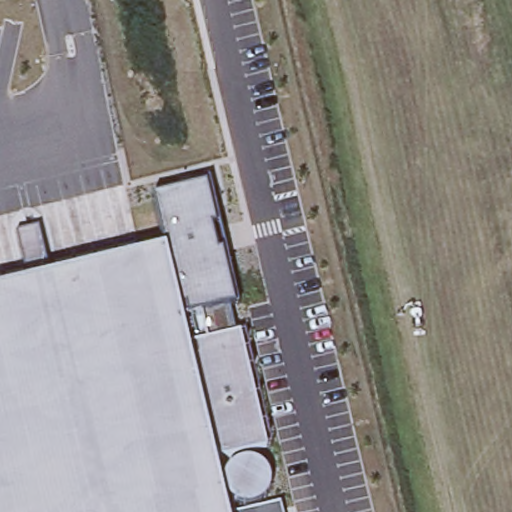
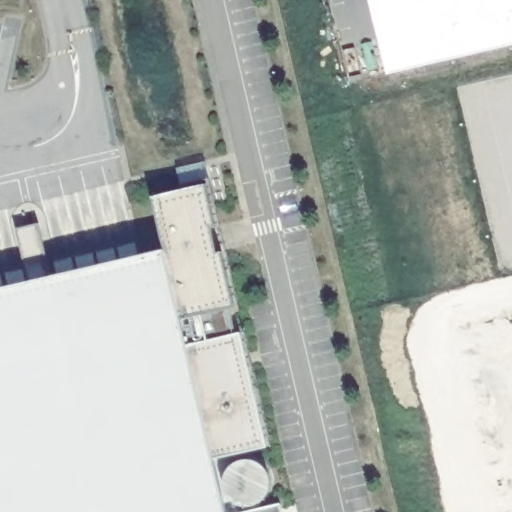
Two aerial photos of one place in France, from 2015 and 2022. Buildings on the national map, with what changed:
new [(512,43),(386,73),(370,0),(512,0),(512,43)]
unchanged [(165,250),(153,197),(206,185),(235,305),(230,306),(236,332),(240,331),(268,446),(213,455),(227,512),(0,512),(0,290),(165,250)]
unchanged [(282,512),(242,512),(280,504),(282,512)]

